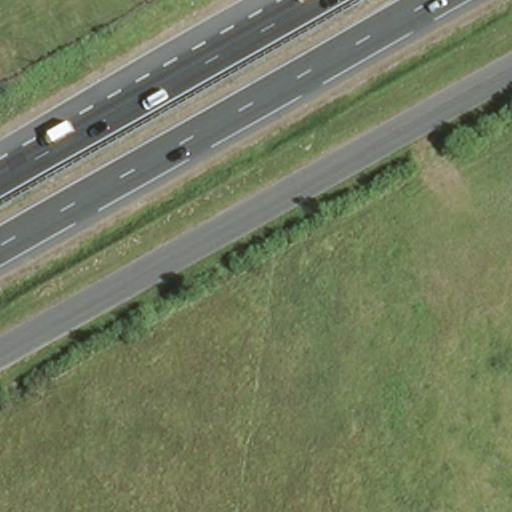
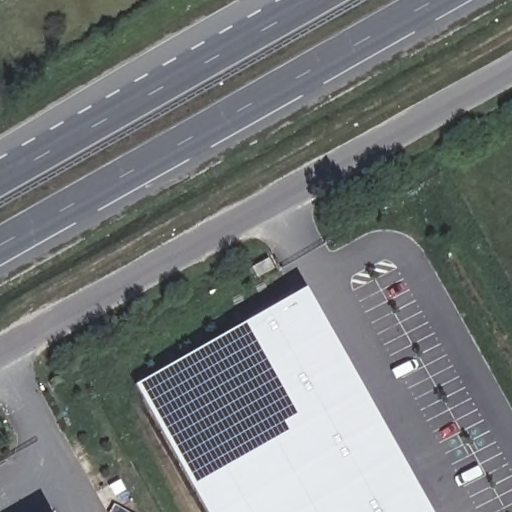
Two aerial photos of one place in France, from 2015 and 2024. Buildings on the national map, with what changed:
new [(312,293),(433,512),(208,512),(136,386),(312,293)]

